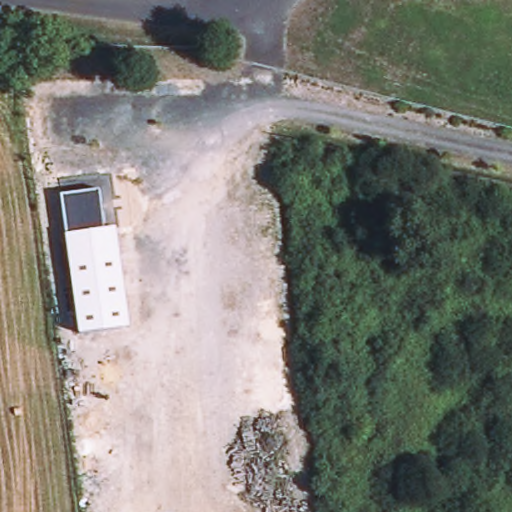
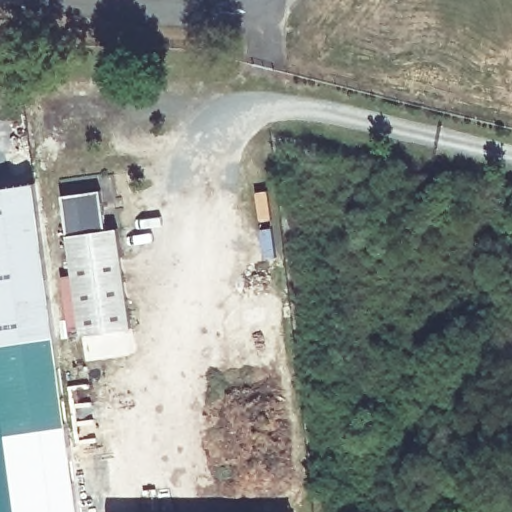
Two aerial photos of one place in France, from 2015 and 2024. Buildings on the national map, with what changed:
new [(56,337),(0,343),(0,186),(37,181),(56,337)]
unchanged [(102,190),(110,230),(120,229),(135,327),(82,335),(64,195),(102,190)]
new [(69,424),(7,432),(0,378),(0,343),(56,337),(69,424)]
new [(15,507),(15,512),(0,512),(0,378),(7,432),(15,507)]
new [(69,424),(81,512),(15,512),(15,507),(7,432),(69,424)]

